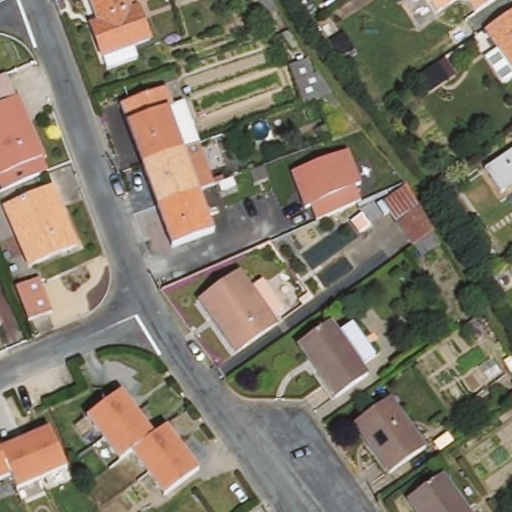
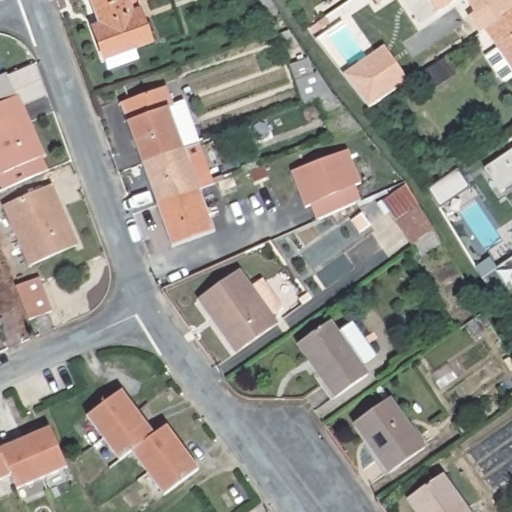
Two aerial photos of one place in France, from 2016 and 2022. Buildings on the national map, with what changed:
unchanged [(149,40),(130,52),(135,61),(106,75),(88,28),(97,23),(88,0),(133,0),(149,40)]
unchanged [(436,8),(431,0),(448,0),(436,8)]
unchanged [(475,8),(469,0),(488,0),(475,8)]
unchanged [(512,6),(512,65),(485,24),(512,6)]
unchanged [(297,65),(282,37),(291,32),(361,130),(329,139),(317,101),(301,104),(291,67),(297,65)]
new [(355,91),(342,75),(384,46),(408,82),(395,90),(368,109),(355,91)]
unchanged [(47,165),(35,171),(1,186),(0,184),(0,71),(4,69),(38,146),(47,165)]
unchanged [(120,105),(164,87),(175,105),(169,108),(183,145),(141,163),(120,105)]
unchanged [(141,163),(183,145),(199,188),(157,206),(141,163)]
unchanged [(314,213),(309,216),(291,182),(345,157),(362,188),(357,191),(364,205),(345,215),(321,227),(314,213)]
unchanged [(442,246),(418,259),(382,203),(407,186),(442,246)]
unchanged [(47,187),(74,248),(32,269),(5,206),(47,187)]
unchanged [(215,230),(172,246),(157,206),(199,188),(215,230)]
unchanged [(240,276),(248,288),(259,280),(279,310),(268,317),(273,325),(237,349),(204,301),(240,276)]
unchanged [(35,291),(50,322),(30,332),(16,300),(35,291)]
unchanged [(323,328),(331,340),(344,331),(365,359),(351,369),(355,373),(329,393),(295,347),(323,328)]
unchanged [(127,391),(159,435),(174,424),(204,466),(161,495),(131,454),(121,461),(88,418),(127,391)]
unchanged [(386,401),(419,446),(389,469),(355,424),(386,401)]
unchanged [(11,493),(5,480),(0,482),(0,455),(44,433),(61,469),(11,493)]
unchanged [(462,512),(416,512),(406,499),(435,475),(462,512)]

